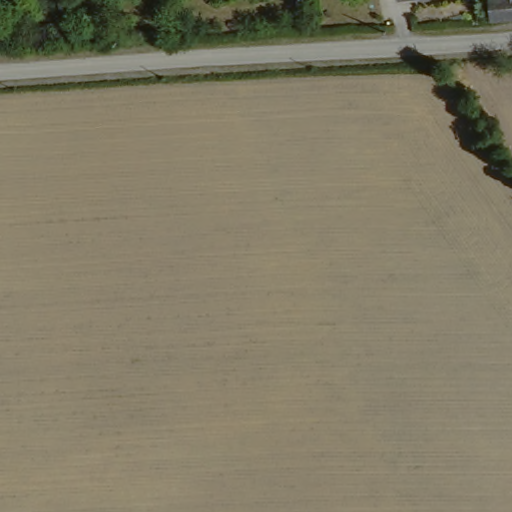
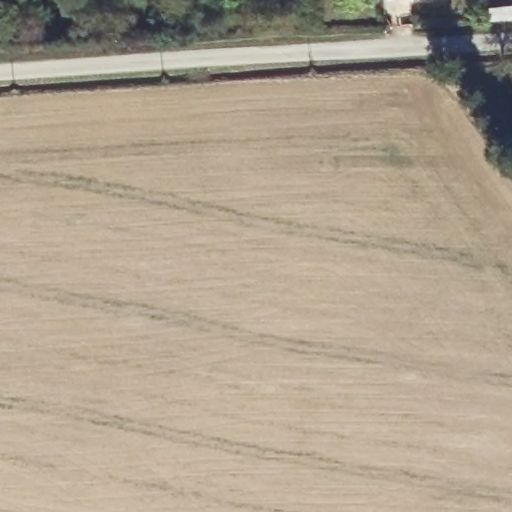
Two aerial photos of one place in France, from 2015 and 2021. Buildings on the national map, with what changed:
unchanged [(59,16),(55,0),(67,0),(71,13),(59,16)]
unchanged [(491,0),(512,0),(512,19),(492,21),(491,0)]

